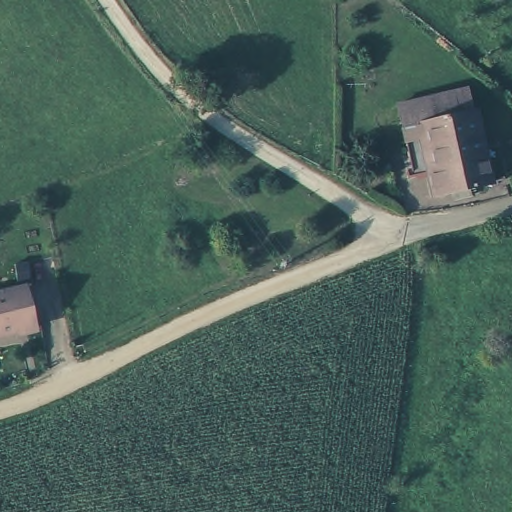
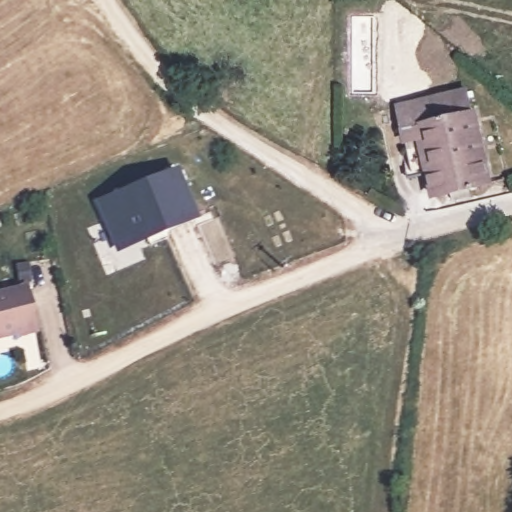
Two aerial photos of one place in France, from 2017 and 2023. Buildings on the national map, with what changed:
unchanged [(479,186),(458,191),(458,199),(443,205),(441,194),(422,199),(417,177),(397,180),(393,162),(399,160),(391,112),(389,106),(437,98),(457,95),(459,105),(462,118),(467,118),(479,186)]
new [(173,167),(193,215),(143,235),(141,229),(111,241),(94,198),(173,167)]
unchanged [(30,333),(0,340),(0,299),(18,295),(30,333)]

